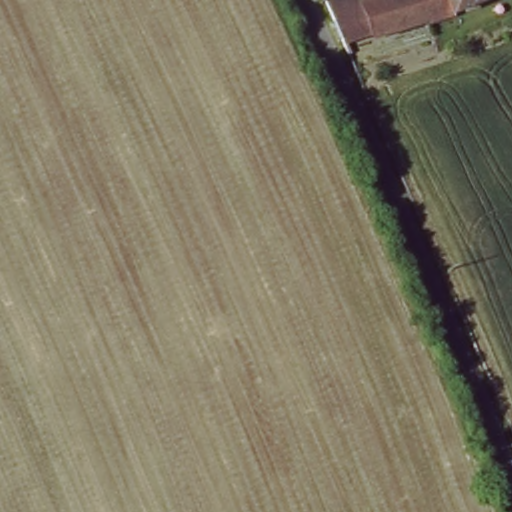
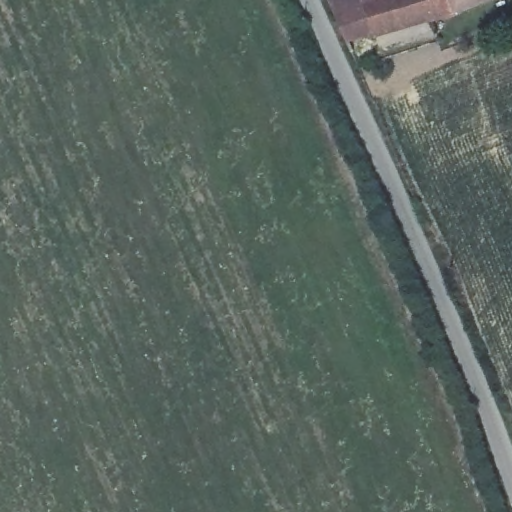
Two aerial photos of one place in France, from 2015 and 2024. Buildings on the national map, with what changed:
unchanged [(352,44),(333,0),(476,0),(352,44)]

